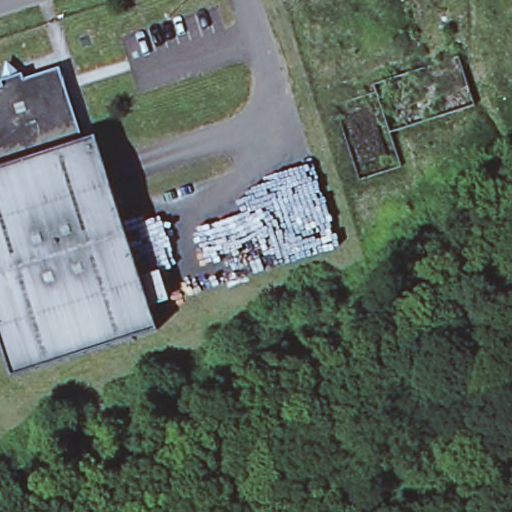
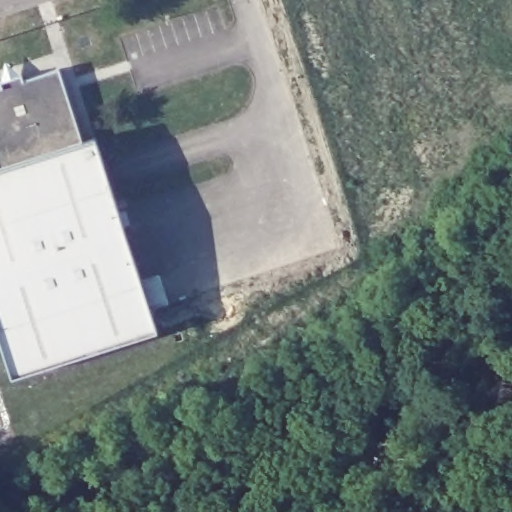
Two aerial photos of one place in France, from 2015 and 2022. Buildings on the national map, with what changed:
unchanged [(19,78),(54,66),(77,139),(91,134),(154,328),(7,376),(0,352),(0,77),(17,71),(19,78)]

